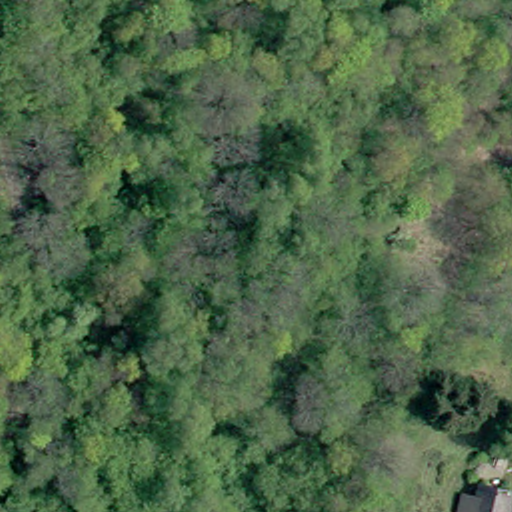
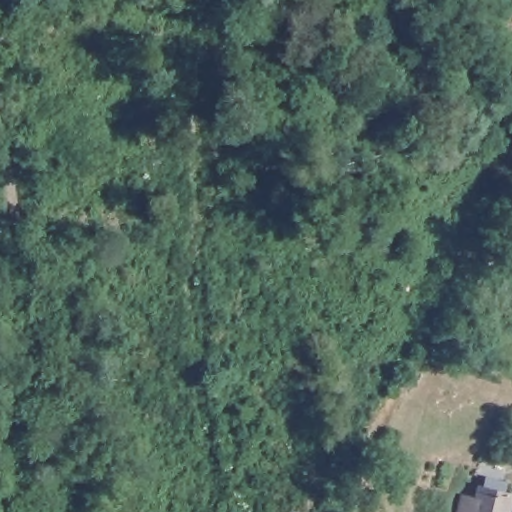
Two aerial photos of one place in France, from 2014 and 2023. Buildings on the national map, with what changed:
unchanged [(453,509),(458,487),(465,488),(465,486),(475,487),(477,477),(512,483),(512,504),(511,512),(457,512),(453,509)]

